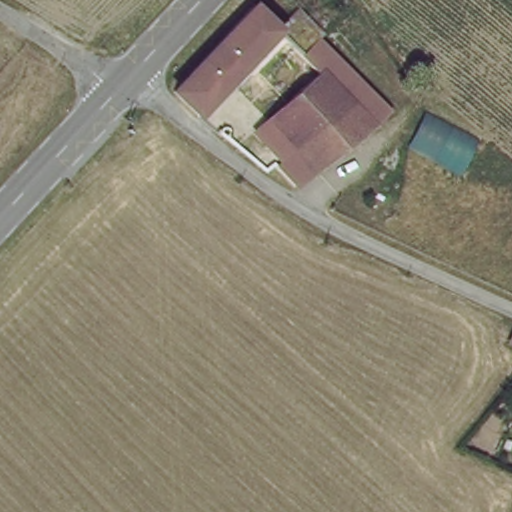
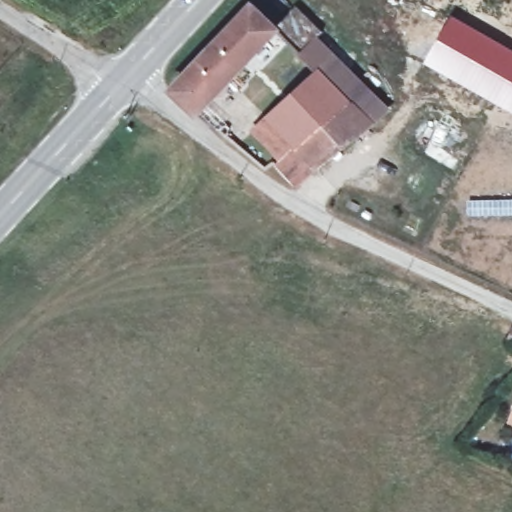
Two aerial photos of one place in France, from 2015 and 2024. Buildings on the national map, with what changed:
unchanged [(275,29),(244,61),(196,114),(170,90),(250,4),(273,26),(275,29)]
new [(512,47),(512,113),(422,62),(452,12),(512,47)]
unchanged [(390,112),(296,186),(251,130),(313,74),(298,55),(319,37),(390,112)]
unchanged [(512,334),(512,341),(509,338),(512,334)]
unchanged [(477,423),(487,433),(470,455),(456,448),(477,423)]

